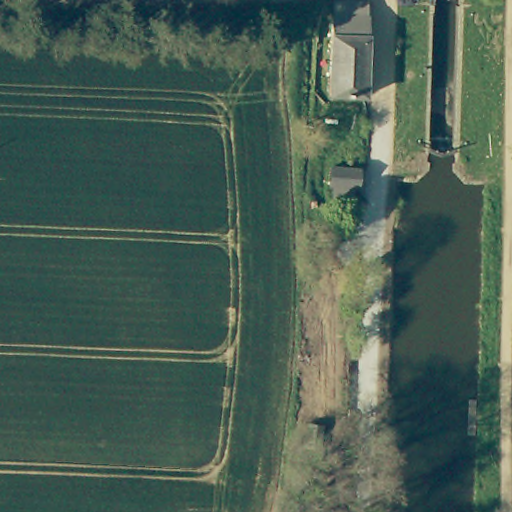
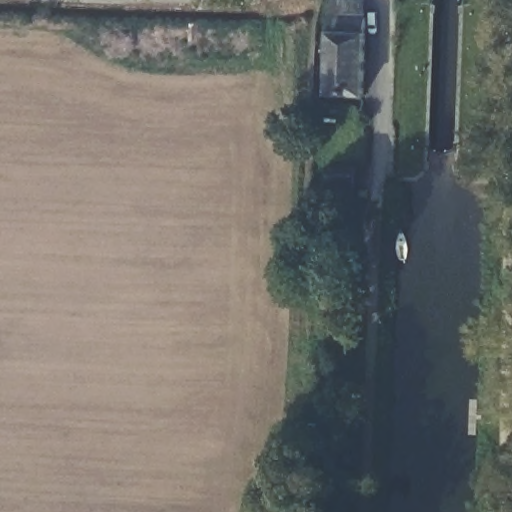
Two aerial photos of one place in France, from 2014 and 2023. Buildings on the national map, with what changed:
unchanged [(329,94),(332,15),(333,15),(333,0),(367,0),(366,15),(367,15),(364,94),(364,95),(329,94)]
unchanged [(358,187),(349,186),(349,196),(336,195),(337,186),(329,186),(330,167),(359,169),(358,187)]

